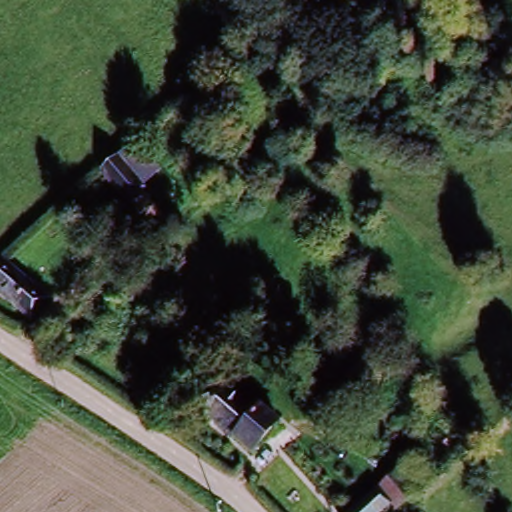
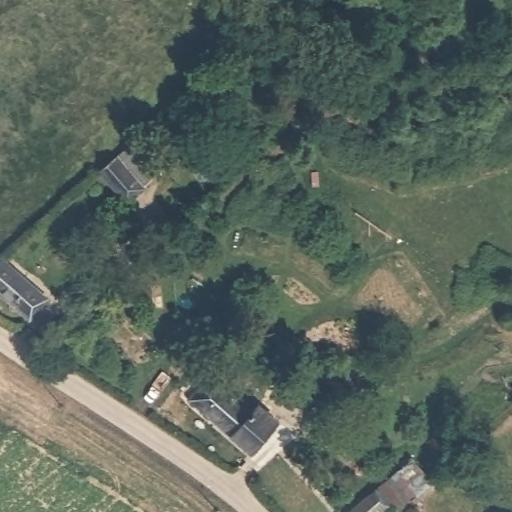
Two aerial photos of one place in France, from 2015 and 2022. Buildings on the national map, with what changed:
unchanged [(135,145),(163,175),(125,204),(93,179),(135,145)]
unchanged [(45,302),(25,323),(0,302),(0,267),(2,265),(45,302)]
unchanged [(185,401),(211,375),(252,413),(227,439),(185,401)]
unchanged [(261,404),(283,426),(249,460),(227,439),(252,413),(261,404)]
unchanged [(362,498),(370,491),(387,475),(405,495),(388,510),(386,512),(348,512),(362,498)]

